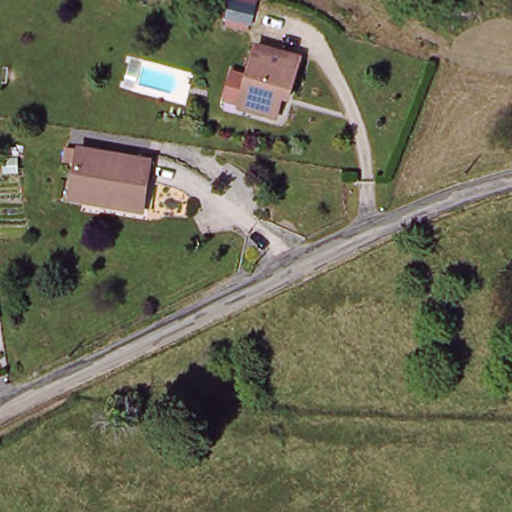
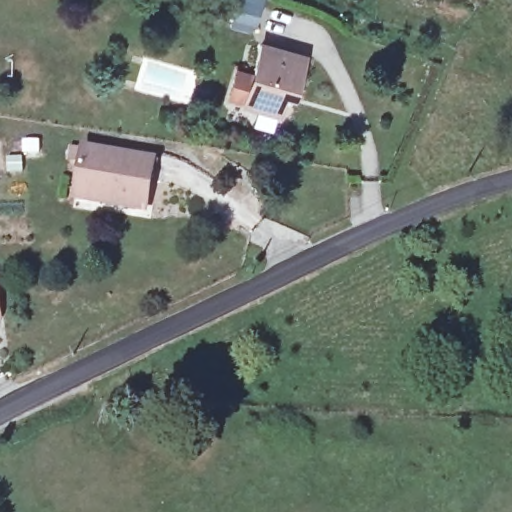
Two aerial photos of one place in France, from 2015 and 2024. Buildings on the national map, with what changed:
unchanged [(253,21),(232,16),(234,0),(259,0),(253,21)]
unchanged [(246,107),(247,104),(234,101),(231,96),(238,72),(254,77),(263,46),(305,57),(298,85),(291,83),(281,117),(246,107)]
unchanged [(76,183),(81,148),(153,158),(148,208),(108,203),(73,199),(76,183)]

